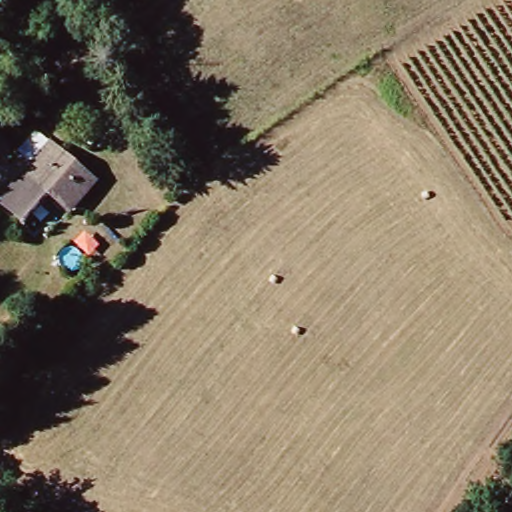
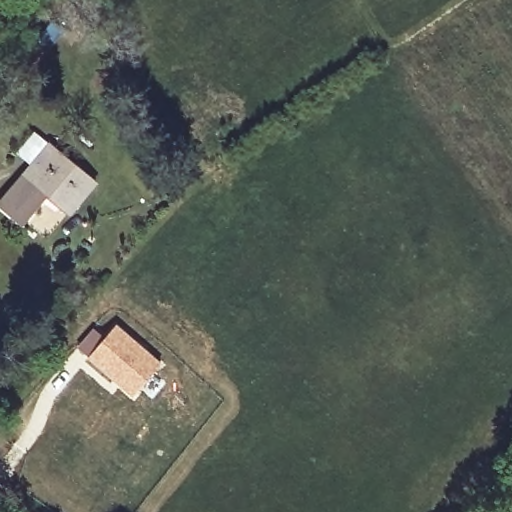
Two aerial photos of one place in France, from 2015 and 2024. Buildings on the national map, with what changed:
unchanged [(6,75),(36,34),(55,49),(25,90),(6,75)]
unchanged [(52,199),(27,227),(2,206),(52,147),(97,187),(76,211),(71,217),(52,199)]
new [(92,327),(104,337),(116,323),(162,363),(132,398),(75,347),(92,327)]

